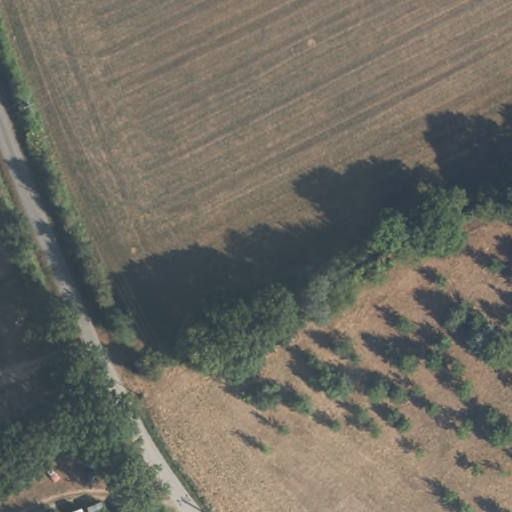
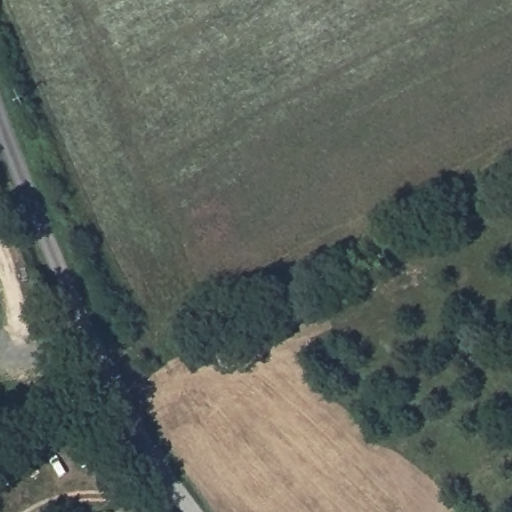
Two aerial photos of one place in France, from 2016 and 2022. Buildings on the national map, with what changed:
unchanged [(132,500),(138,512),(108,512),(132,500)]

